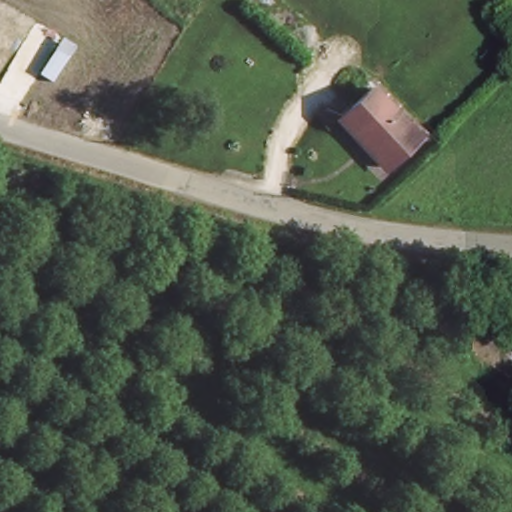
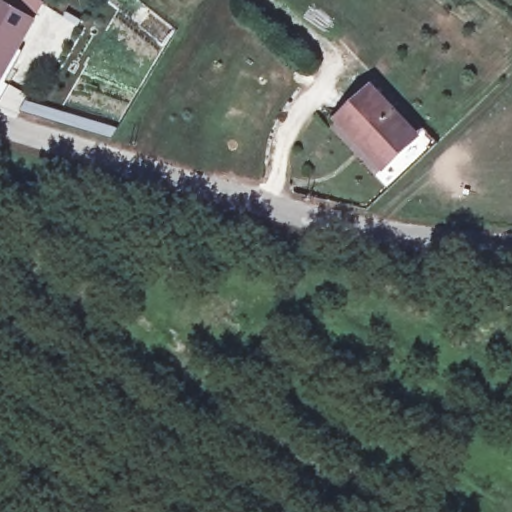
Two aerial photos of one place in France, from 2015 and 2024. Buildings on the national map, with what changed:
new [(37,19),(2,83),(0,82),(0,0),(4,0),(37,19)]
unchanged [(424,134),(390,164),(346,116),(378,86),(424,134)]

